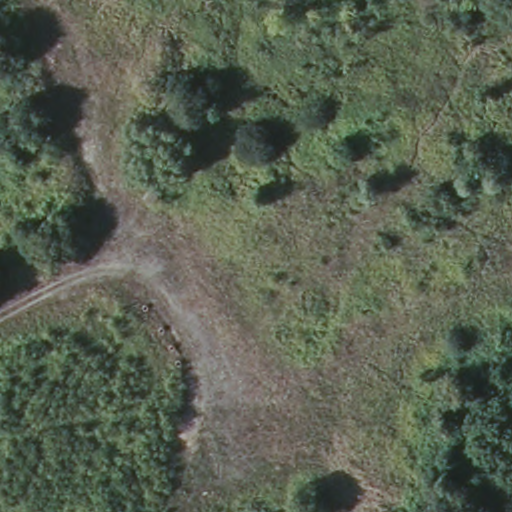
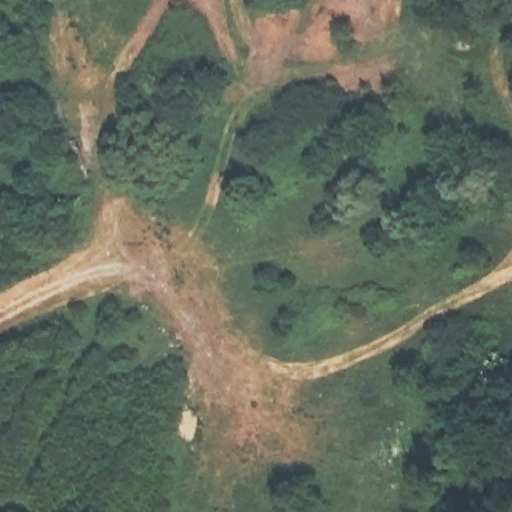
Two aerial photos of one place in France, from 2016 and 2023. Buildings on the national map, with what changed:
[]

